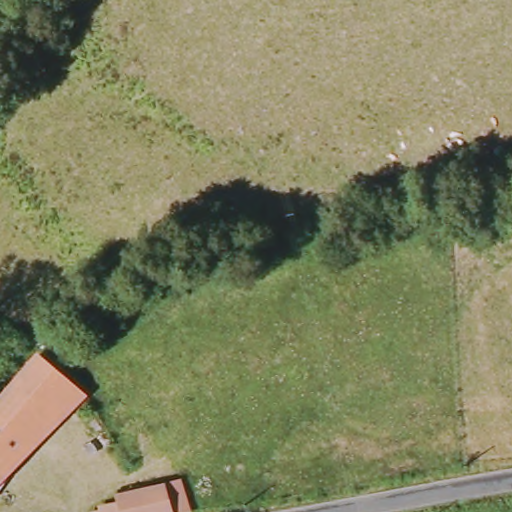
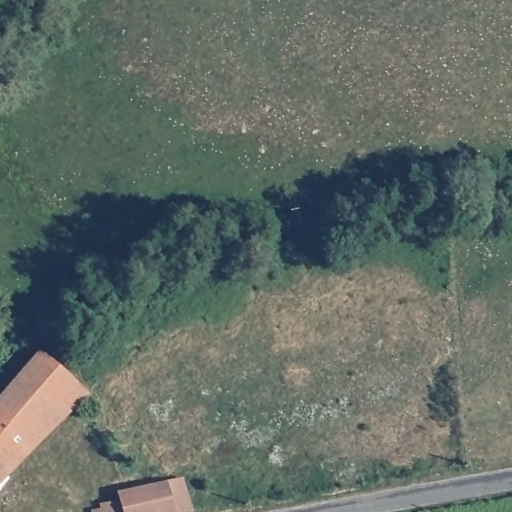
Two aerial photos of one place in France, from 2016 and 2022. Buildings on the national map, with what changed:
unchanged [(32,354),(73,392),(0,468),(0,390),(32,354)]
unchanged [(73,392),(82,401),(0,477),(0,468),(73,392)]
unchanged [(162,484),(171,512),(104,512),(103,505),(120,502),(119,495),(162,484)]

